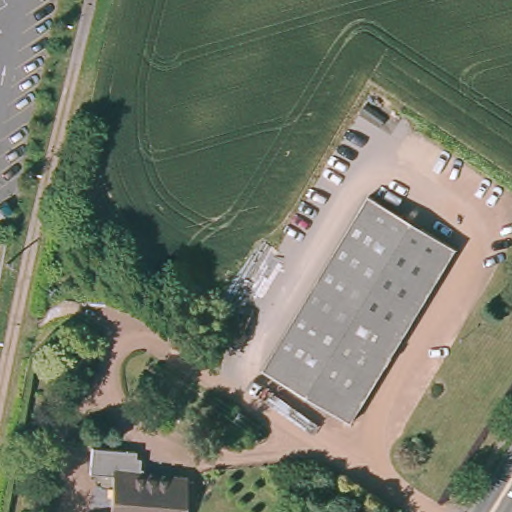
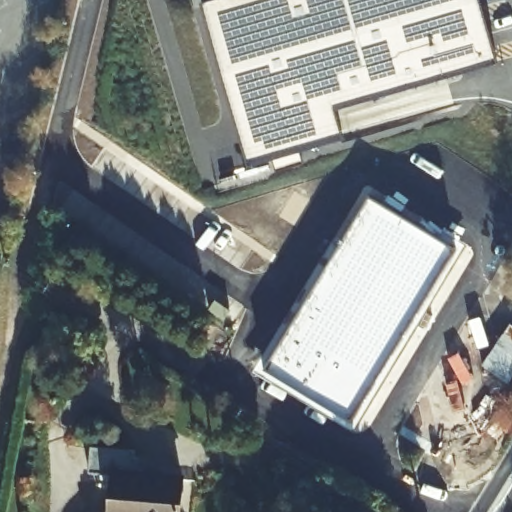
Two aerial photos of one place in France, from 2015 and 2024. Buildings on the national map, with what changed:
new [(465,0),(476,36),(490,31),(499,61),(336,110),(344,138),(301,150),(305,163),(276,171),(271,157),(248,165),(202,6),(223,0),(465,0)]
unchanged [(365,195),(453,247),(348,424),(259,370),(365,195)]
unchanged [(106,465),(176,470),(173,512),(103,512),(106,465)]

